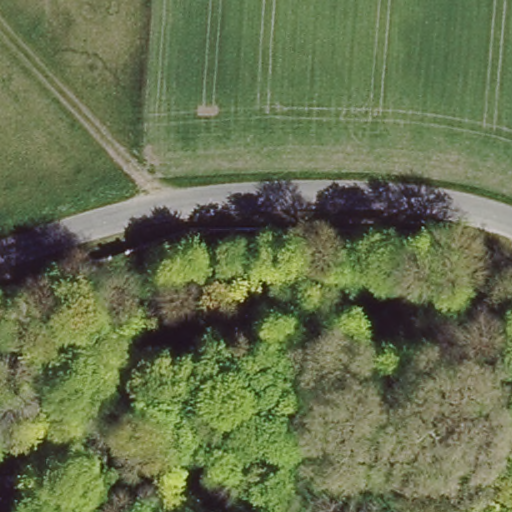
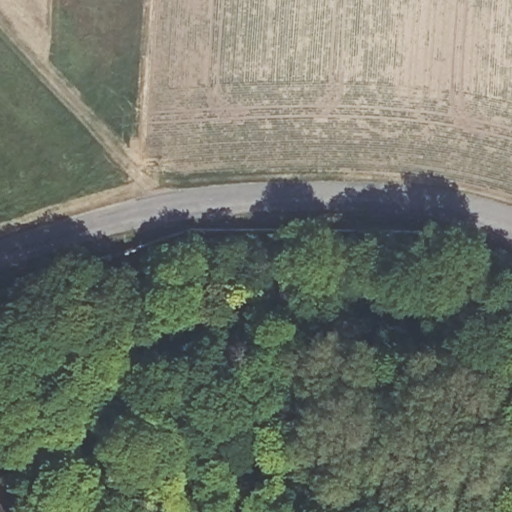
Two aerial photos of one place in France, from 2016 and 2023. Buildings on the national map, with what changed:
unchanged [(18,472),(20,508),(0,509),(0,472),(18,472)]

